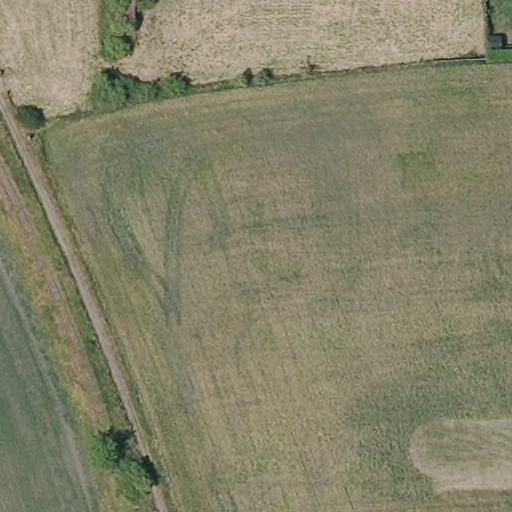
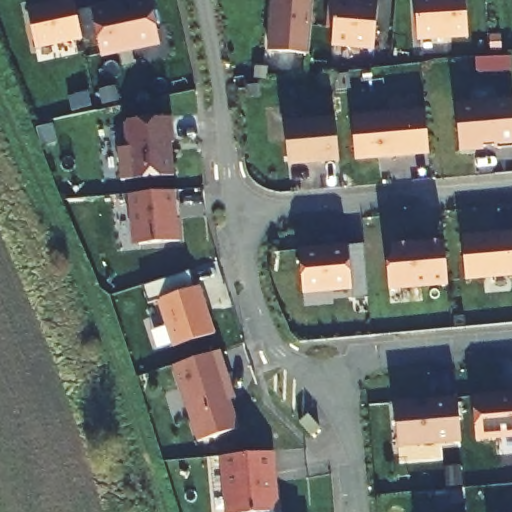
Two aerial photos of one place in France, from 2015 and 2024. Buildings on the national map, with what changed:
new [(57,6),(56,4),(72,0),(80,42),(34,51),(26,12),(57,6)]
new [(160,40),(104,51),(92,9),(131,0),(150,0),(160,40)]
demolished [(137,22),(110,25),(108,0),(136,0),(137,22)]
new [(309,52),(268,50),(272,0),(314,0),(309,52)]
new [(375,49),(332,45),(336,0),(379,0),(375,49)]
new [(467,35),(417,38),(415,0),(465,0),(467,35)]
new [(512,104),(512,151),(497,152),(497,149),(482,150),(482,151),(459,154),(455,109),(512,104)]
new [(424,114),(428,157),(354,164),(350,120),(424,114)]
new [(171,115),(172,141),(167,141),(168,150),(172,153),(173,175),(122,180),(119,148),(128,146),(126,121),(171,115)]
new [(340,161),(289,166),(285,120),(335,116),(340,161)]
new [(130,198),(177,195),(178,212),(175,213),(177,245),(138,249),(132,244),(128,199),(130,198)]
new [(512,236),(512,280),(464,284),(460,240),(512,236)]
new [(390,250),(425,246),(425,242),(442,241),(447,288),(387,293),(385,267),(390,260),(390,250)]
new [(366,298),(350,300),(350,292),(300,296),(297,254),(346,250),(362,249),(366,298)]
new [(197,290),(213,337),(171,351),(155,303),(197,290)]
new [(225,380),(233,402),(227,404),(237,432),(197,445),(172,369),(217,355),(225,380)]
new [(512,398),(512,441),(475,444),(471,401),(512,398)]
new [(456,402),(460,445),(397,450),(393,408),(456,402)]
new [(297,425),(305,418),(319,432),(310,440),(297,425)]
new [(270,478),(267,478),(269,488),(273,488),(275,512),(228,512),(224,460),(269,455),(270,478)]

